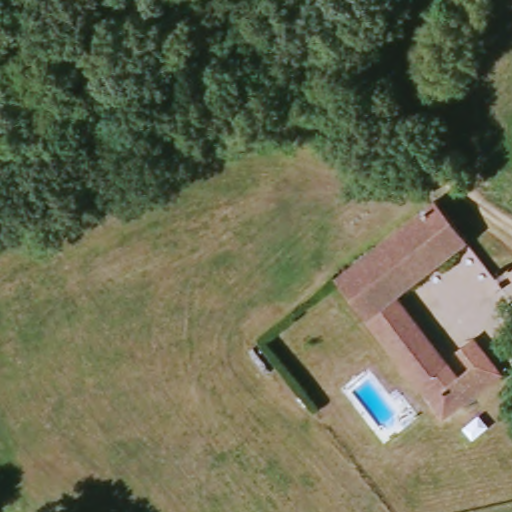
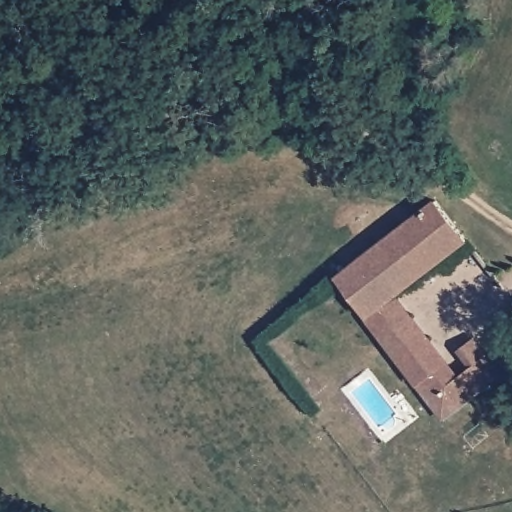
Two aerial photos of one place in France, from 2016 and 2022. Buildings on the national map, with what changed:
unchanged [(327,275),(426,206),(455,245),(390,291),(355,316),(327,275)]
unchanged [(440,360),(407,385),(355,316),(390,291),(440,360)]
unchanged [(451,375),(465,365),(453,348),(470,337),(497,374),(433,420),(407,385),(440,360),(451,375)]

